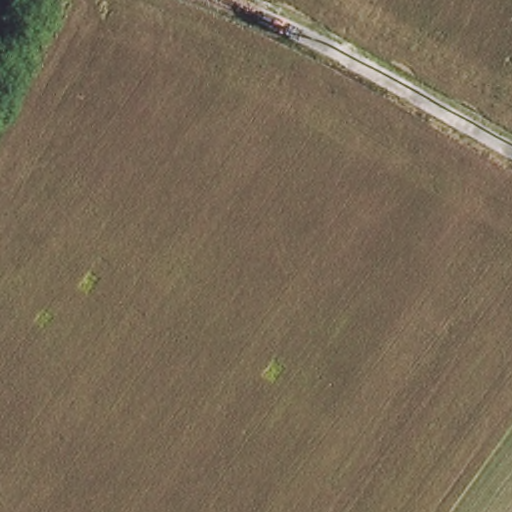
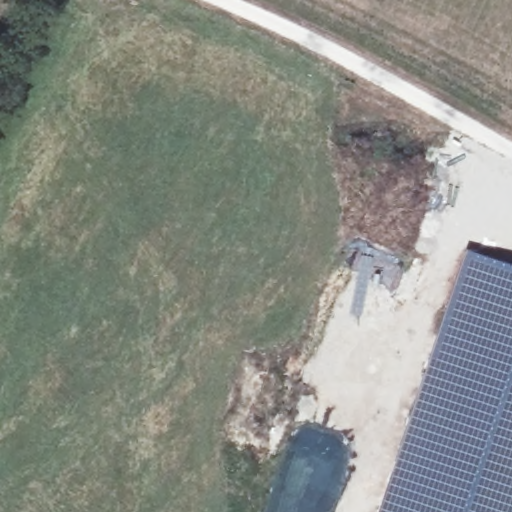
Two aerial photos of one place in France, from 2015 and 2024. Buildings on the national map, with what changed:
new [(465,247),(512,263),(512,512),(376,512),(423,369),(465,247)]

